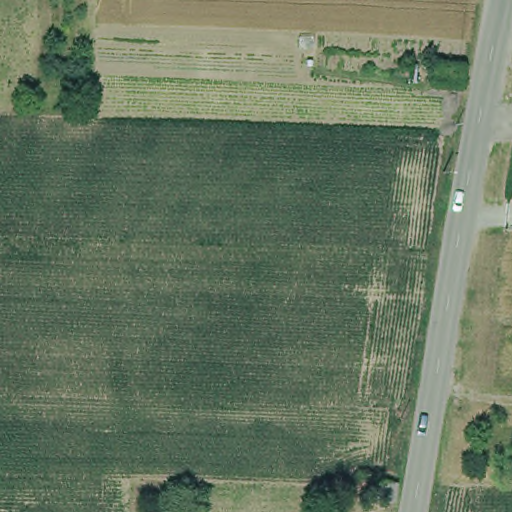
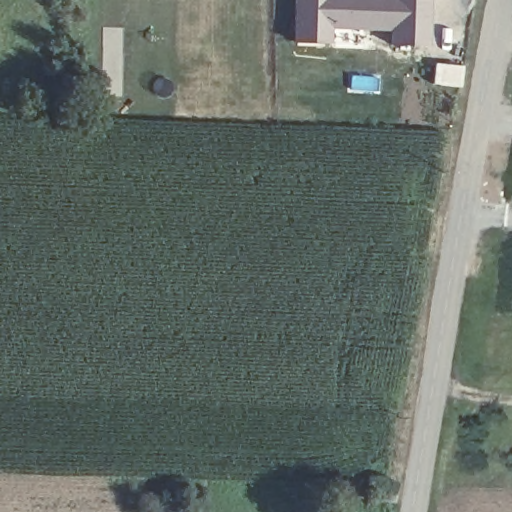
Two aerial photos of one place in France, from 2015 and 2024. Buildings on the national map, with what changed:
new [(388,46),(389,31),(330,30),(330,43),(293,44),(293,0),(425,0),(425,47),(388,46)]
unchanged [(455,93),(425,86),(431,54),(461,62),(455,93)]
unchanged [(392,506),(362,502),(365,479),(394,479),(392,506)]

